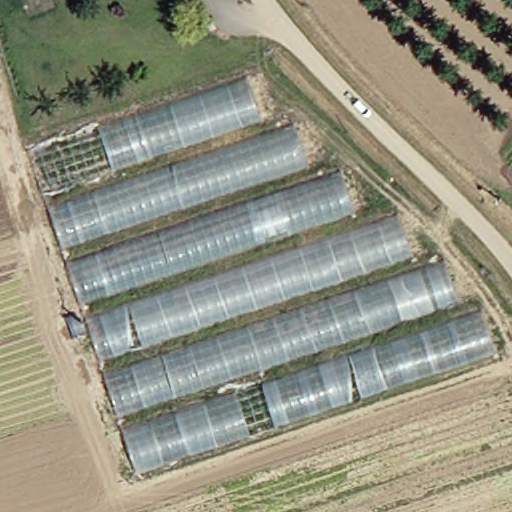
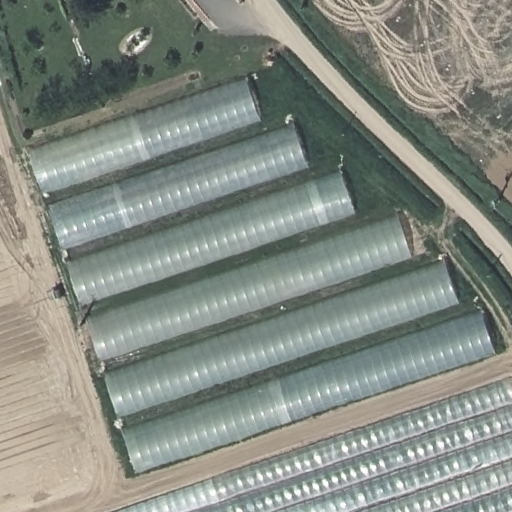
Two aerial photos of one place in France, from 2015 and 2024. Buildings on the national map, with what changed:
unchanged [(125,469),(20,147),(239,77),(257,130),(285,123),(303,174),(332,165),(351,224),(391,213),(409,263),(437,256),(458,313),(472,309),(485,347),(125,469)]
new [(510,377),(512,381),(512,512),(114,512),(510,377)]

